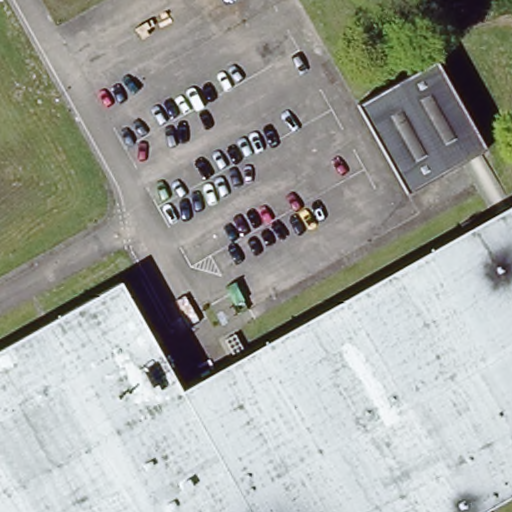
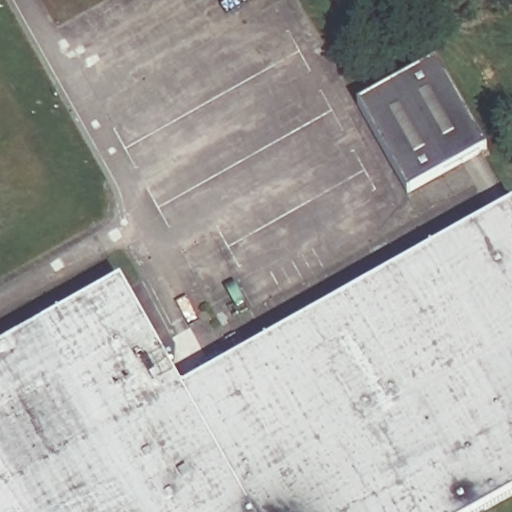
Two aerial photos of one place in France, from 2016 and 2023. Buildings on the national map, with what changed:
unchanged [(357,109),(434,66),(485,157),(407,200),(357,109)]
unchanged [(183,392),(507,211),(512,221),(512,495),(481,512),(0,512),(0,352),(121,283),(183,392)]

